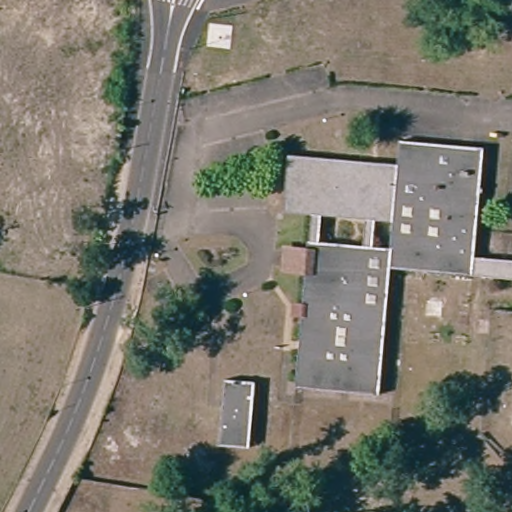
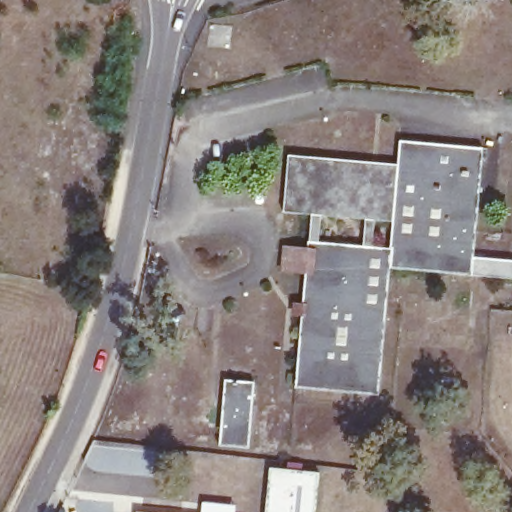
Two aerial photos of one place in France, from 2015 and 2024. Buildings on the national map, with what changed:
unchanged [(479,224),(478,248),(373,236),(373,212),(329,207),(326,230),(370,235),(363,301),(393,304),(384,387),(302,377),(313,264),(293,261),(294,240),(315,242),(319,205),(290,202),(297,146),(404,158),(406,136),(488,147),(479,224)]
unchanged [(512,252),(512,275),(398,262),(393,304),(363,301),(370,235),(373,236),(478,248),(512,252)]
unchanged [(256,371),(249,438),(219,435),(226,368),(256,371)]
new [(317,512),(267,512),(271,468),(320,473),(317,512)]

